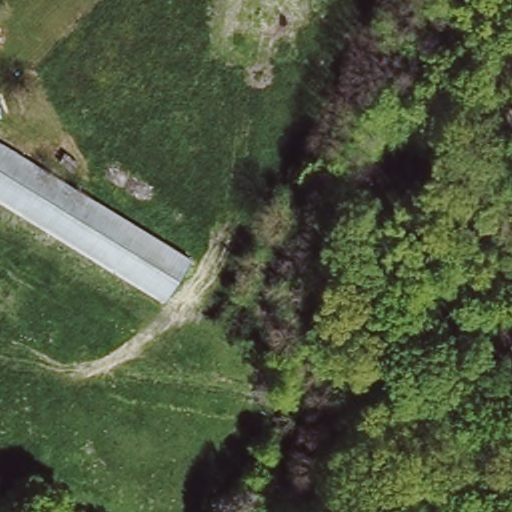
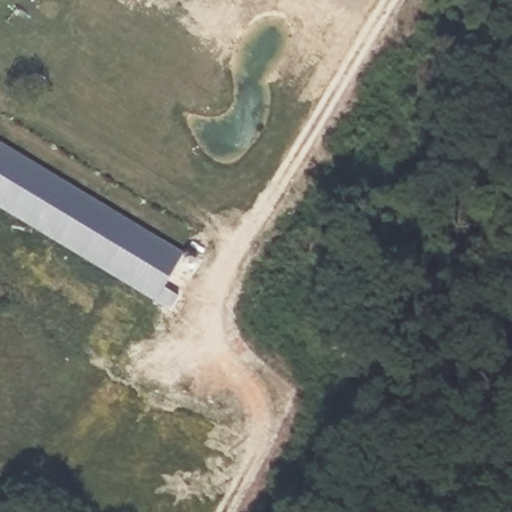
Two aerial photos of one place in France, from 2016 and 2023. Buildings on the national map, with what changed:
unchanged [(195,256),(162,298),(0,197),(0,139),(1,137),(195,256)]

